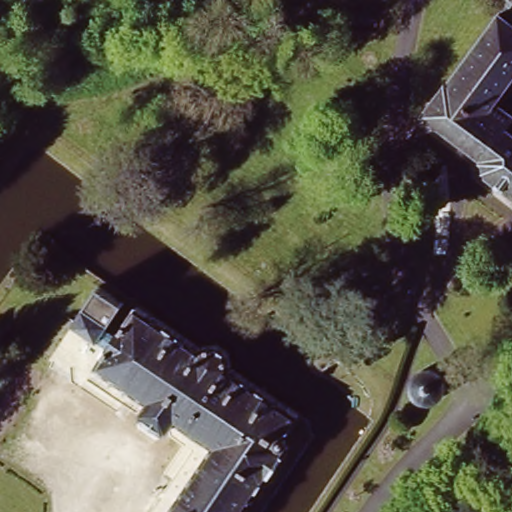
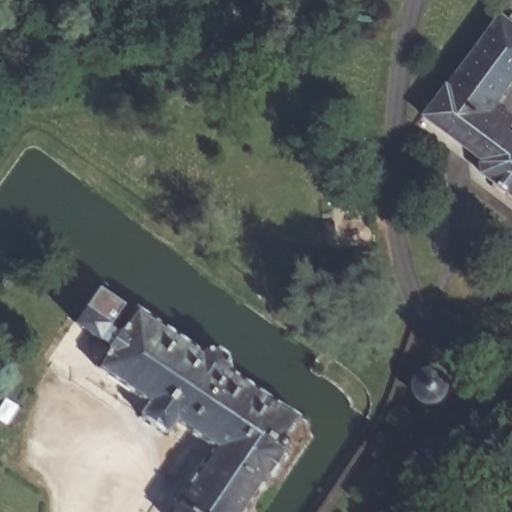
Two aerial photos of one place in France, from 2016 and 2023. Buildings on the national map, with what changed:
unchanged [(425,114),(503,12),(512,19),(512,26),(438,124),(425,114)]
unchanged [(500,98),(512,107),(512,115),(506,123),(512,128),(512,196),(486,176),(480,156),(438,124),(512,26),(512,82),(500,98)]
unchanged [(208,342),(211,341),(217,341),(220,343),(223,345),(225,347),(227,352),(226,355),(226,359),(224,362),(223,366),(291,413),(280,434),(290,442),(239,512),(167,512),(213,447),(172,418),(162,429),(136,411),(144,398),(96,364),(135,305),(201,351),(205,346),(208,342)]
unchanged [(422,362),(430,361),(436,362),(443,366),(448,371),(450,377),(451,385),(448,394),(446,397),(440,402),(430,405),(425,404),(418,402),(414,399),(409,391),(408,379),(411,370),(414,368),(417,365),(422,362)]

